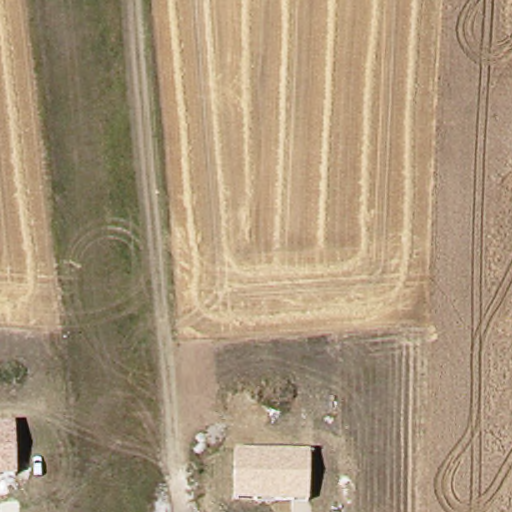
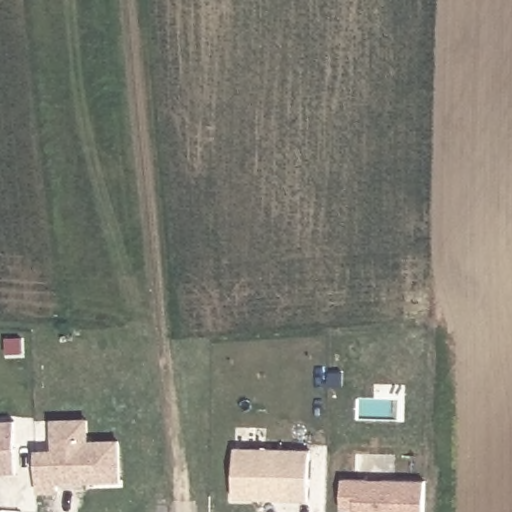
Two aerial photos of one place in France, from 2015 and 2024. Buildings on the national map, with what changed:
unchanged [(17,475),(0,475),(0,421),(15,420),(17,475)]
new [(56,492),(35,493),(34,454),(52,453),(51,438),(51,423),(85,422),(85,437),(86,445),(118,443),(120,482),(88,483),(56,484),(56,492)]
unchanged [(310,450),(310,501),(234,500),(232,448),(310,450)]
new [(425,512),(356,512),(342,512),(343,480),(425,481),(425,512)]

